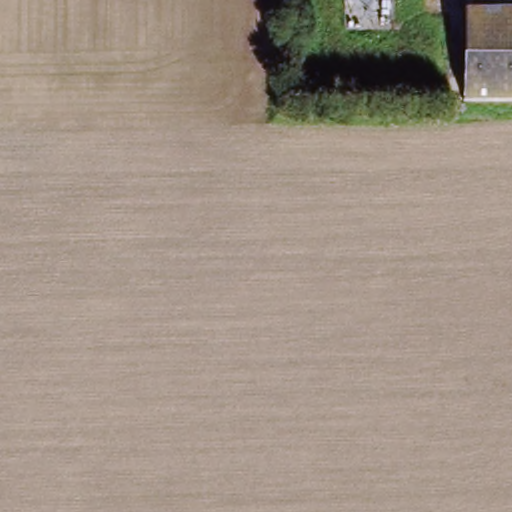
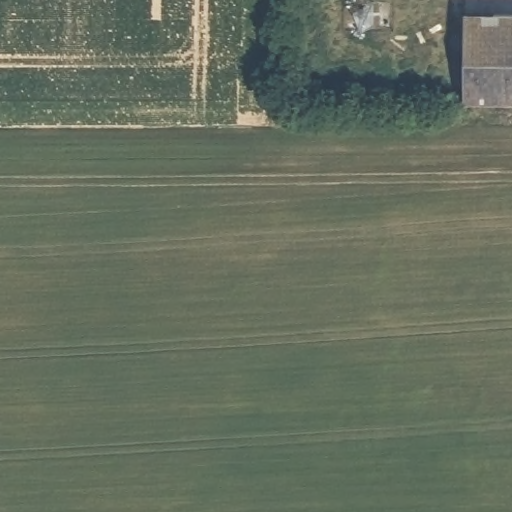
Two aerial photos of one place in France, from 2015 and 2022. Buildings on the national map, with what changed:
unchanged [(455,18),(512,19),(512,104),(455,103),(455,18)]

